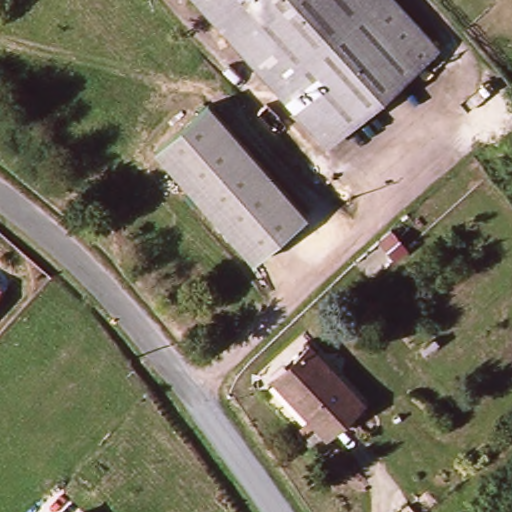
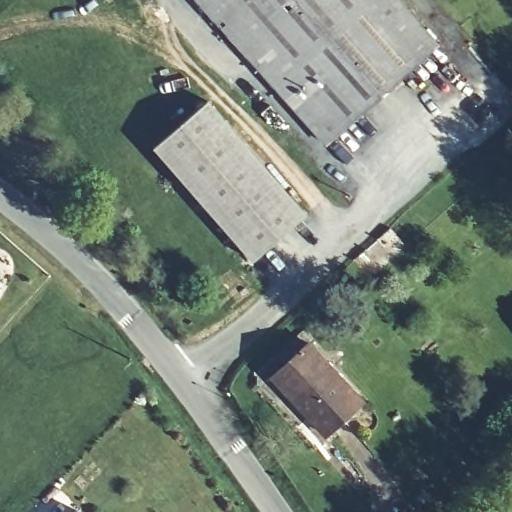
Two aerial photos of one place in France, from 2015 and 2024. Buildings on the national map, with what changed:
unchanged [(377,0),(285,82),(213,0),(377,0)]
unchanged [(336,139),(285,82),(377,0),(401,0),(441,45),(336,139)]
unchanged [(184,119),(207,99),(307,212),(287,230),(254,258),(154,145),(184,119)]
unchanged [(0,296),(0,286),(4,288),(0,296)]
unchanged [(364,397),(323,437),(317,431),(306,441),(263,393),(275,381),(269,375),(309,341),(364,397)]
unchanged [(80,512),(75,512),(77,509),(80,512)]

